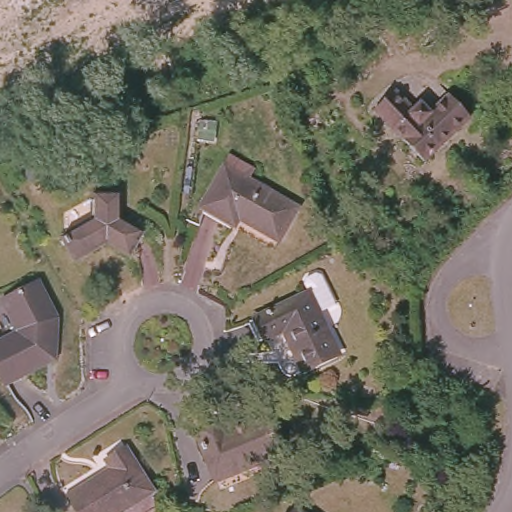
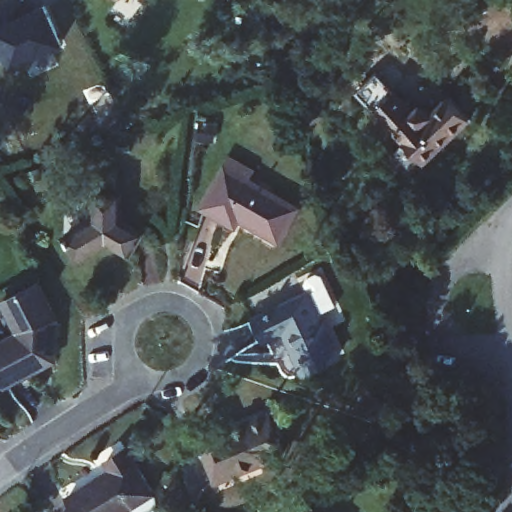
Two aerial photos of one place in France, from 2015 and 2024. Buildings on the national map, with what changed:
new [(19,0),(25,13),(42,5),(59,42),(8,65),(0,47),(0,4),(9,0),(19,0)]
unchanged [(367,108),(372,105),(389,89),(407,109),(414,101),(424,113),(443,95),(464,117),(422,155),(416,161),(367,108)]
unchanged [(276,240),(237,218),(233,225),(200,206),(224,166),(221,165),(227,153),(254,169),(247,180),(295,207),(276,240)]
unchanged [(111,242),(79,258),(67,237),(98,219),(99,195),(123,194),(123,220),(144,232),(132,253),(111,242)]
unchanged [(308,293),(304,284),(306,278),(315,274),(320,276),(334,305),(317,313),(337,355),(303,371),(282,331),(264,339),(253,318),(308,293)]
unchanged [(57,320),(54,359),(2,385),(0,380),(0,340),(16,332),(0,300),(37,281),(57,320)]
unchanged [(231,428),(265,413),(282,453),(216,480),(197,436),(228,423),(231,428)]
unchanged [(66,496),(109,469),(104,461),(125,448),(152,491),(134,504),(120,512),(77,512),(66,496)]

